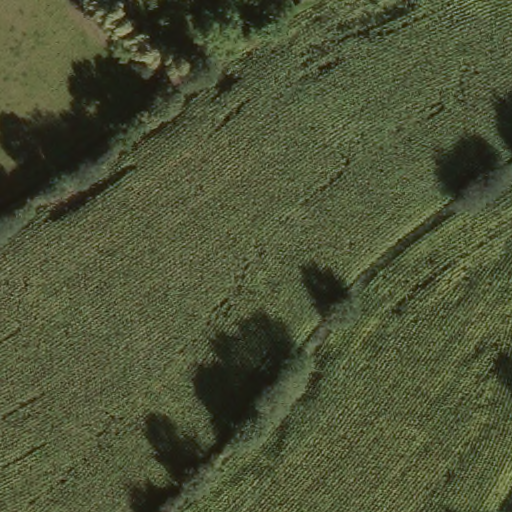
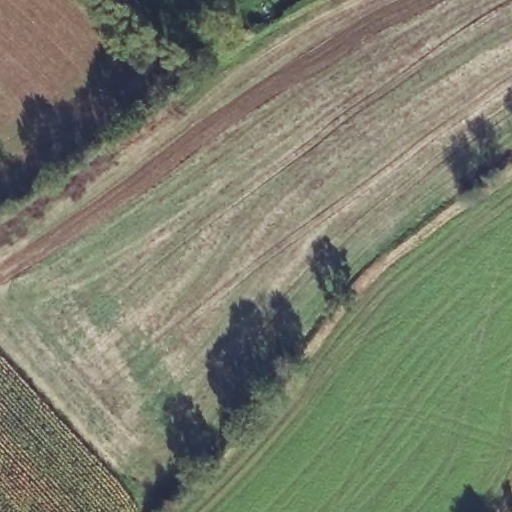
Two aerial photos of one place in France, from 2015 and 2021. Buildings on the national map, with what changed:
[]

